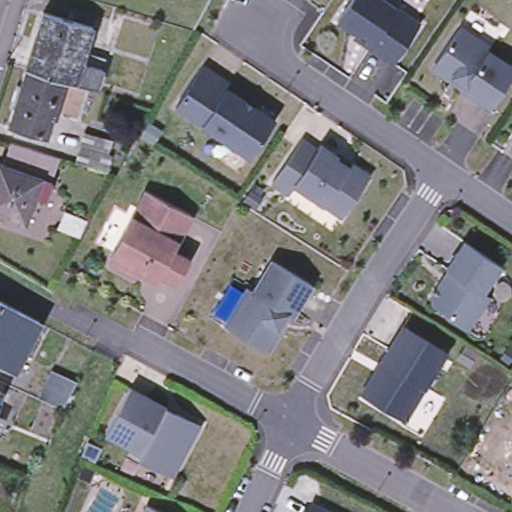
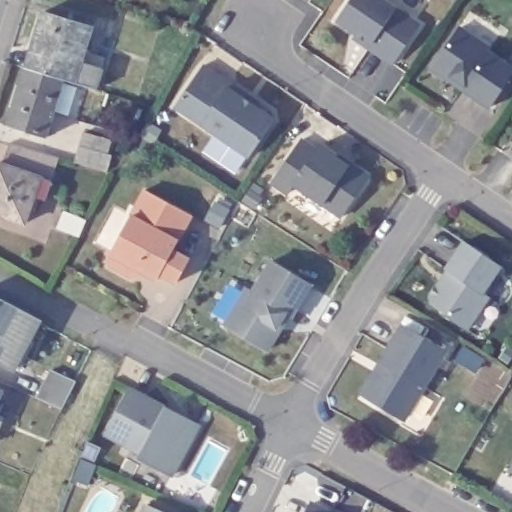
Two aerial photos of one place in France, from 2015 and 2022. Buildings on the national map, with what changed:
unchanged [(352,30),(332,17),(344,0),(383,0),(390,5),(415,21),(388,61),(363,44),(349,34),(352,30)]
unchanged [(73,81),(62,78),(31,69),(41,35),(35,33),(41,10),(90,26),(80,61),(101,67),(95,88),(73,81)]
unchanged [(431,68),(430,61),(454,24),(485,44),(482,48),(510,67),(485,104),(457,85),(441,75),(431,68)]
unchanged [(46,135),(7,124),(13,106),(8,105),(15,83),(19,84),(24,67),(31,69),(62,78),(46,135)]
unchanged [(260,106),(273,115),(275,122),(250,159),(215,135),(175,108),(203,68),(230,86),(260,106)]
unchanged [(107,138),(103,150),(83,144),(87,132),(107,138)]
unchanged [(320,147),(337,158),(338,157),(353,168),(367,177),(367,181),(342,219),(309,197),(295,187),(288,196),(272,185),(301,141),(317,152),(320,147)]
unchanged [(48,183),(1,165),(8,142),(58,156),(48,183)]
unchanged [(74,161),(78,144),(110,154),(105,170),(74,161)]
unchanged [(42,202),(32,198),(22,224),(0,216),(0,164),(1,165),(48,183),(42,202)]
unchanged [(137,273),(135,277),(128,279),(105,267),(103,260),(107,253),(127,217),(140,192),(187,217),(168,252),(185,261),(172,284),(155,275),(152,281),(137,273)]
unchanged [(85,225),(79,242),(59,234),(65,217),(85,225)]
unchanged [(483,295),(488,298),(467,331),(447,318),(447,316),(432,305),(430,299),(438,286),(448,272),(447,272),(463,243),(501,268),(483,295)]
unchanged [(268,353),(225,327),(247,291),(253,294),(272,264),(312,287),(292,319),(290,317),(281,331),(268,353)]
unchanged [(0,358),(0,298),(42,321),(17,367),(0,358)]
unchanged [(382,362),(403,328),(445,354),(405,421),(367,398),(363,396),(382,362)]
unchanged [(63,413),(38,402),(53,372),(78,384),(63,413)]
unchanged [(177,415),(199,427),(172,477),(139,459),(141,455),(105,435),(130,389),(167,409),(177,415)]
unchanged [(326,512),(309,512),(312,505),(326,512)]
unchanged [(159,512),(144,512),(147,507),(159,512)]

